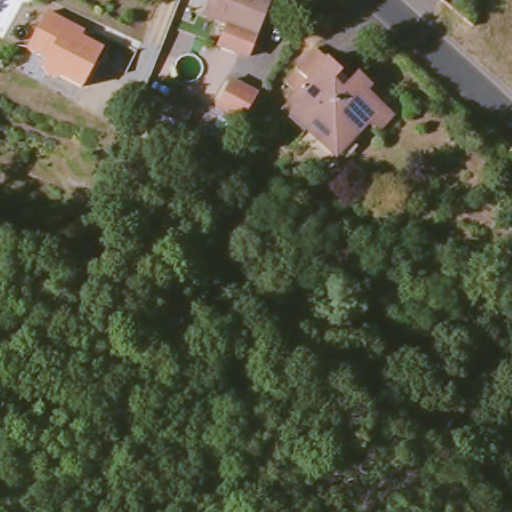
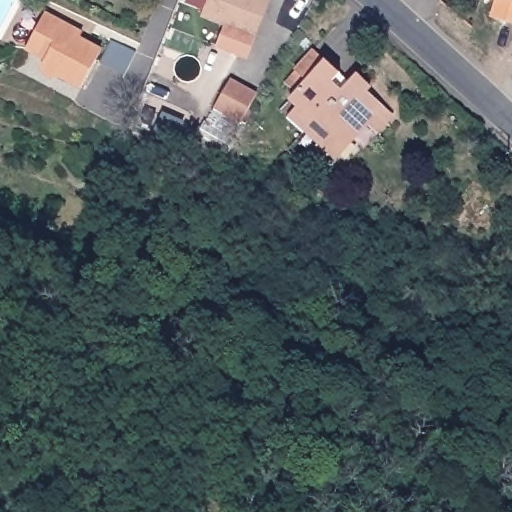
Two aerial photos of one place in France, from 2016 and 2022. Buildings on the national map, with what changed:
unchanged [(219,47),(227,27),(205,17),(211,0),(272,0),(248,60),(219,47)]
new [(498,1),(496,0),(512,0),(512,24),(493,19),(498,1)]
unchanged [(65,25),(62,30),(101,50),(81,88),(60,77),(46,79),(42,69),(46,61),(26,51),(45,15),(65,25)]
unchanged [(366,122),(337,152),(315,132),(309,138),(292,121),(303,107),(292,97),(310,79),(300,69),(317,47),(342,72),(336,80),(345,88),(358,75),(372,87),(370,91),(395,116),(377,134),(366,122)]
unchanged [(243,126),(218,111),(234,85),(260,101),(243,126)]

